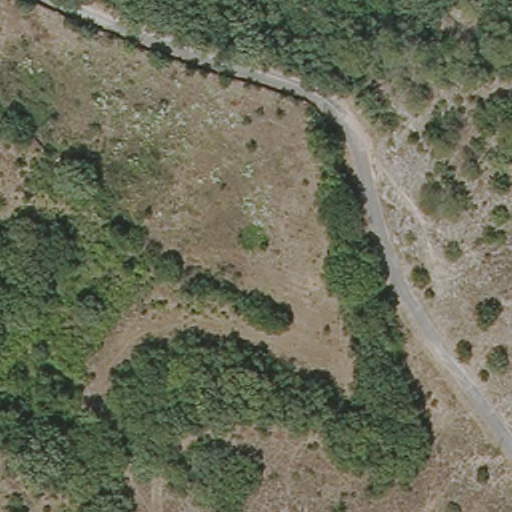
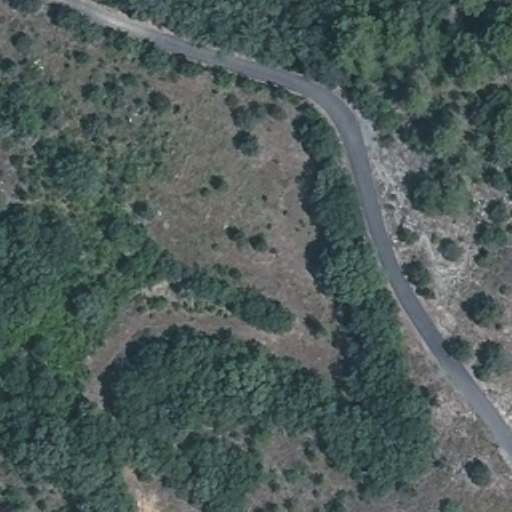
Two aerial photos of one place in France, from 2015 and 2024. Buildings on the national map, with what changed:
[]

